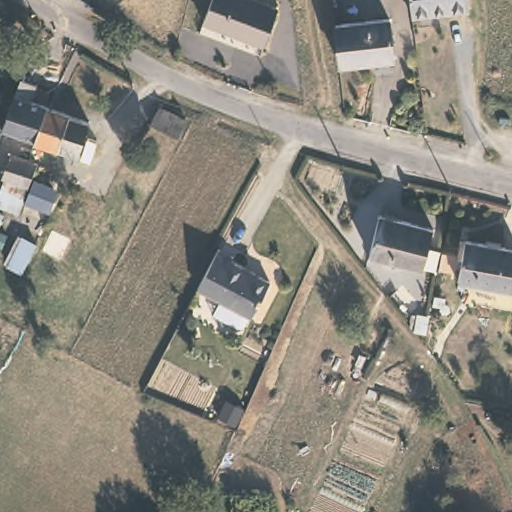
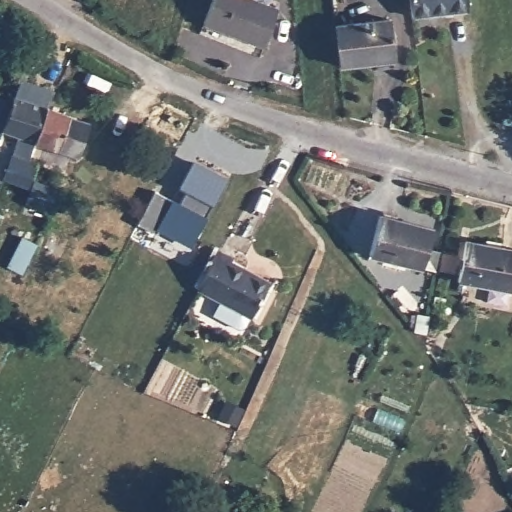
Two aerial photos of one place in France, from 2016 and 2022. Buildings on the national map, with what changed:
unchanged [(263,44),(202,20),(210,0),(257,0),(278,9),(263,44)]
unchanged [(467,10),(410,16),(409,0),(466,0),(467,10)]
unchanged [(393,57),(339,64),(335,25),(388,20),(393,57)]
unchanged [(34,136),(3,126),(18,82),(30,87),(26,99),(45,105),(34,136)]
unchanged [(87,119),(76,152),(33,138),(34,136),(45,105),(87,119)]
unchanged [(11,152),(37,161),(31,182),(56,189),(49,211),(24,201),(20,212),(0,206),(0,188),(11,152)]
new [(214,205),(191,249),(154,230),(171,199),(177,202),(183,191),(178,188),(192,161),(228,179),(214,205)]
unchanged [(22,217),(19,227),(4,222),(7,212),(22,217)]
unchanged [(431,227),(421,267),(368,255),(378,215),(431,227)]
unchanged [(512,289),(457,280),(465,239),(512,247),(512,289)]
unchanged [(234,253),(232,258),(271,278),(254,312),(251,311),(245,321),(239,323),(214,310),(221,296),(198,284),(219,245),(234,253)]

